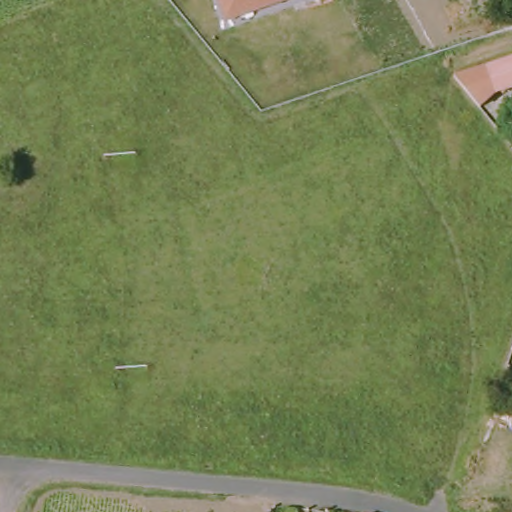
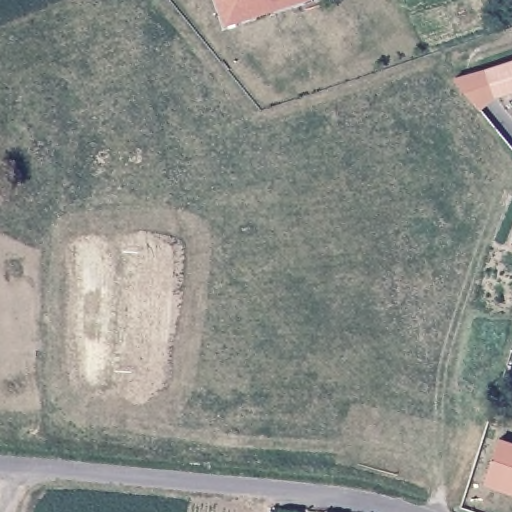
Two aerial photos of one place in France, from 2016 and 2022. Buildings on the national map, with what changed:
unchanged [(214,0),(298,0),(223,25),(214,0)]
unchanged [(489,68),(512,62),(512,87),(494,92),(489,68)]
new [(501,438),(512,442),(512,494),(484,485),(501,438)]

